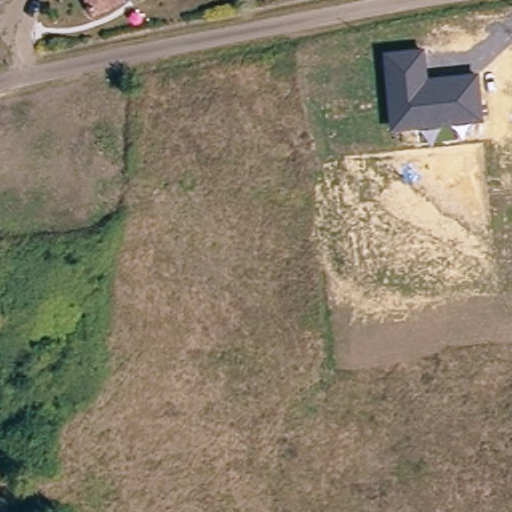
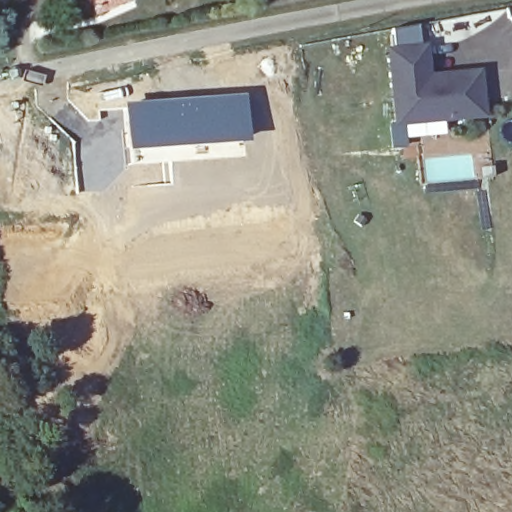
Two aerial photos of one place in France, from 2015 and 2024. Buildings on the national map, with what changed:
unchanged [(106,14),(100,0),(140,0),(106,14)]
unchanged [(387,49),(427,45),(429,75),(480,69),(486,118),(392,128),(387,49)]
new [(244,93),(245,143),(124,152),(122,102),(244,93)]

